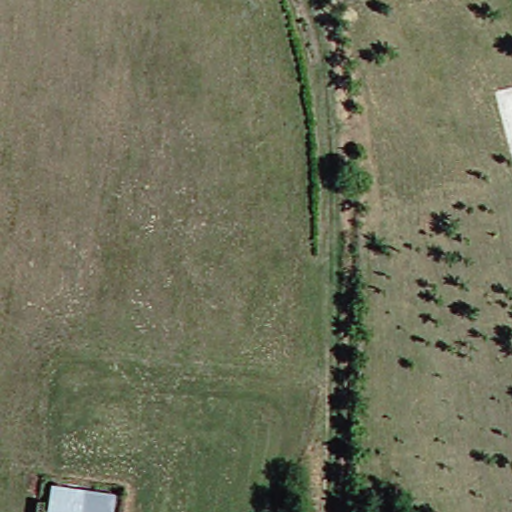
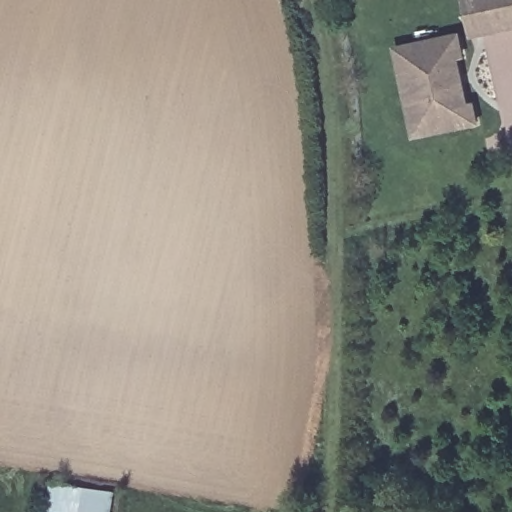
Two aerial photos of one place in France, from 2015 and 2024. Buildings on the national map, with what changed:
new [(462,0),(512,0),(512,32),(470,40),(462,0)]
new [(465,60),(460,62),(468,104),(475,103),(480,127),(411,142),(392,48),(460,33),(465,60)]
unchanged [(120,492),(118,512),(57,512),(61,484),(120,492)]

